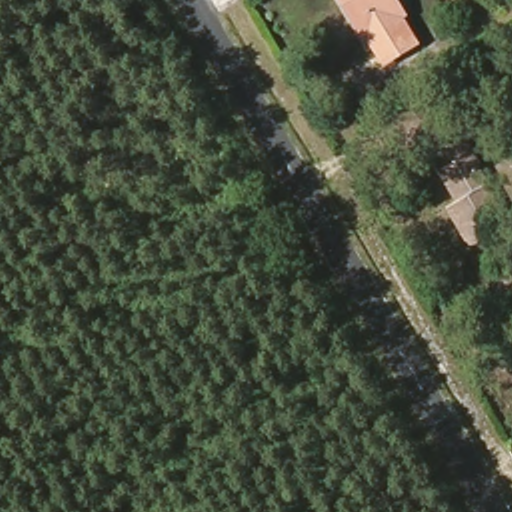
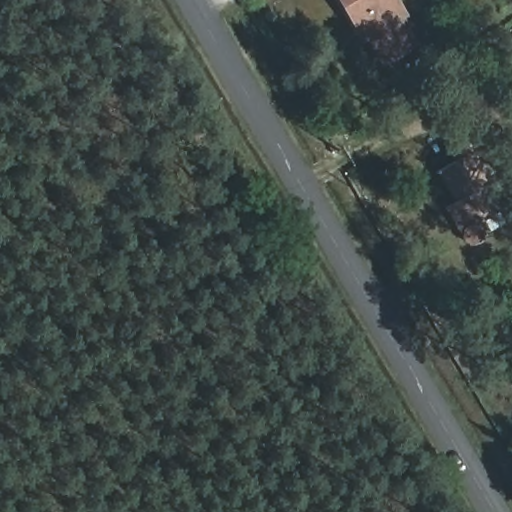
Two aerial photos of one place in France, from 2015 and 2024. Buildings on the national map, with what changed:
unchanged [(363,43),(337,0),(394,0),(405,20),(363,43)]
unchanged [(486,186),(480,190),(485,198),(489,196),(498,212),(476,225),(480,230),(483,234),(481,237),(480,241),(475,244),(471,245),(467,245),(462,240),(461,236),(461,231),(463,228),(466,226),(453,204),(457,201),(440,171),(457,160),(451,150),(465,141),(480,167),(477,169),(486,186)]

